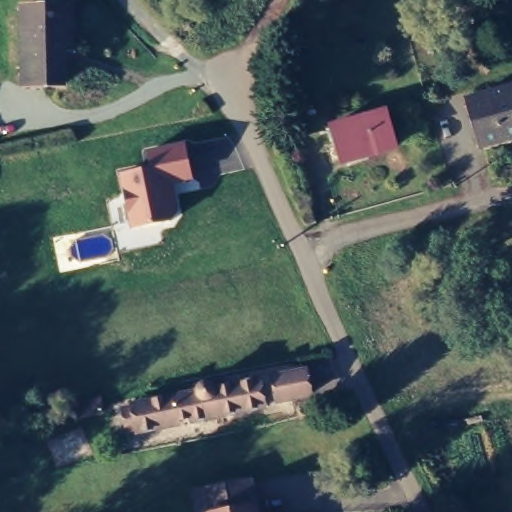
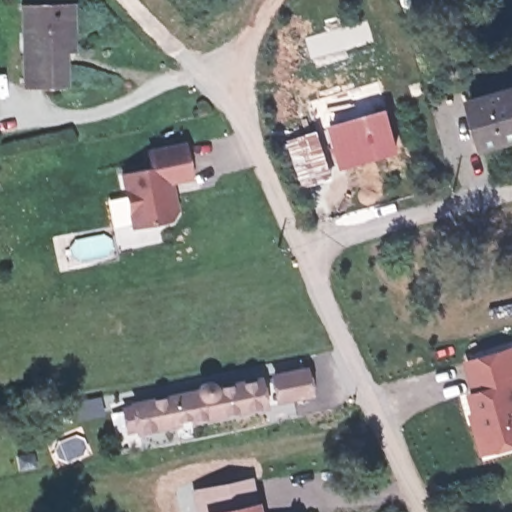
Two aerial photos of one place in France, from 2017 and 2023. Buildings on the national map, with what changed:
unchanged [(70,40),(63,41),(62,79),(17,78),(16,2),(70,3),(70,40)]
unchanged [(491,143),(469,100),(512,80),(512,133),(491,143)]
unchanged [(379,106),(395,139),(344,162),(329,129),(379,106)]
unchanged [(194,179),(174,182),(179,213),(171,223),(129,228),(120,173),(146,168),(143,149),(183,142),(194,179)]
new [(467,394),(473,392),(463,359),(512,344),(512,445),(482,454),(468,414),(472,413),(467,394)]
unchanged [(299,358),(317,395),(281,402),(267,364),(299,358)]
unchanged [(251,365),(265,411),(126,442),(118,403),(251,365)]
unchanged [(197,486),(247,476),(249,486),(254,512),(202,512),(200,495),(197,486)]

